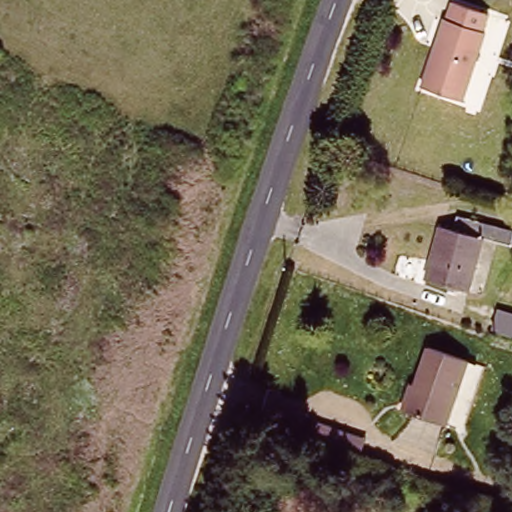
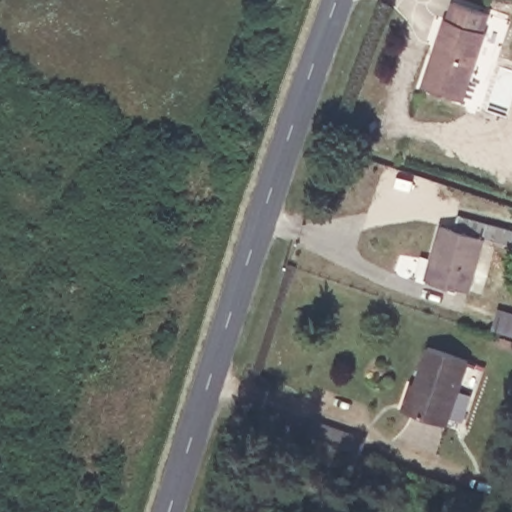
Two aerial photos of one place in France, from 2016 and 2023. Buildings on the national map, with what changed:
unchanged [(450,0),(459,0),(486,10),(480,28),(482,29),(457,95),(415,80),(440,13),(445,15),(450,0)]
unchanged [(452,228),(458,211),(512,229),(512,248),(487,239),(470,290),(428,276),(445,225),(452,228)]
unchanged [(471,360),(449,422),(404,406),(412,383),(417,385),(431,345),(471,360)]
unchanged [(311,431),(316,416),(365,432),(359,448),(311,431)]

